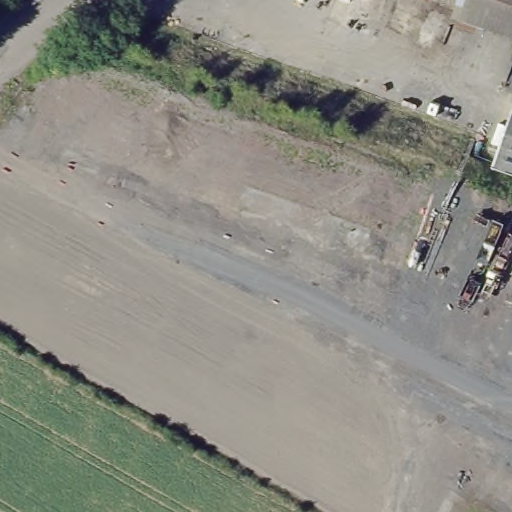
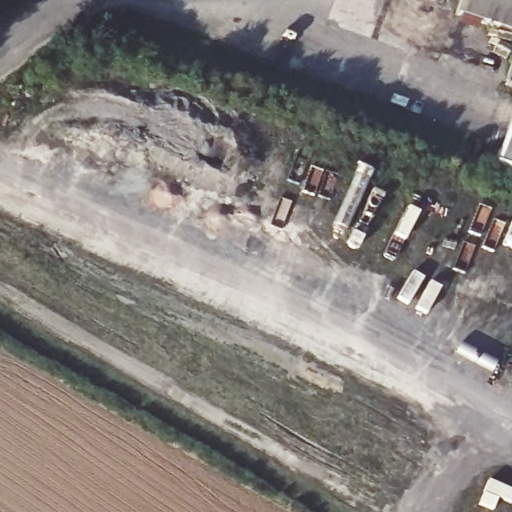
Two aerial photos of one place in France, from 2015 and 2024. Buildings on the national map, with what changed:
unchanged [(461,7),(463,0),(512,0),(512,29),(461,7)]
unchanged [(509,83),(512,75),(512,84),(509,83)]
unchanged [(502,159),(512,131),(512,163),(502,159)]

